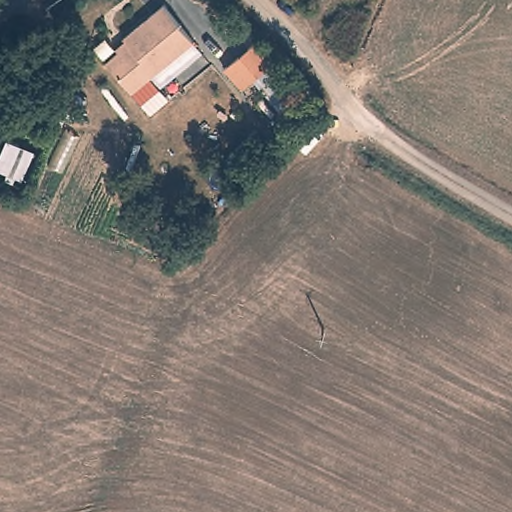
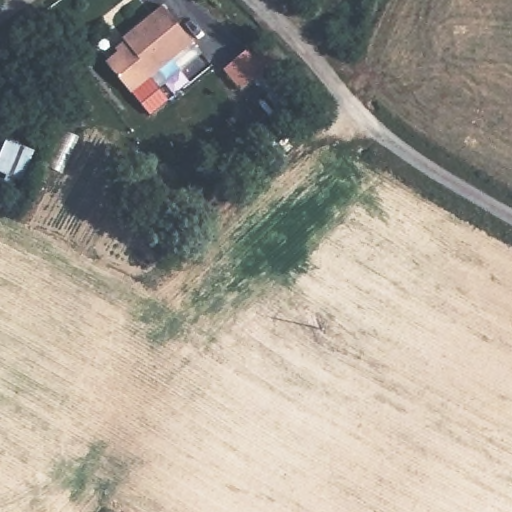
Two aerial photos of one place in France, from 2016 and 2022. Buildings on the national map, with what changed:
unchanged [(200,0),(198,3),(194,0),(200,0)]
unchanged [(134,99),(109,70),(130,50),(125,44),(163,11),(194,45),(134,99)]
unchanged [(224,64),(256,34),(272,55),(241,81),(224,64)]

